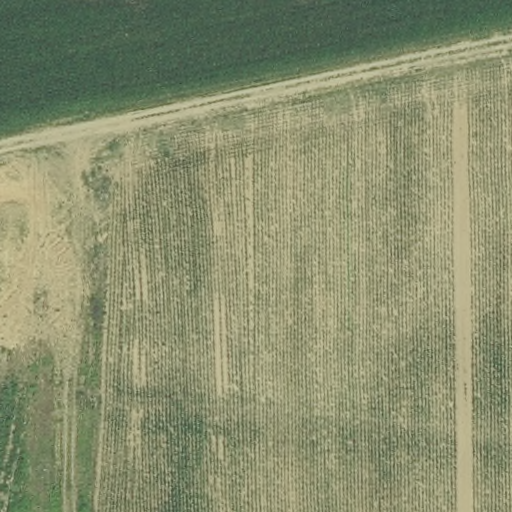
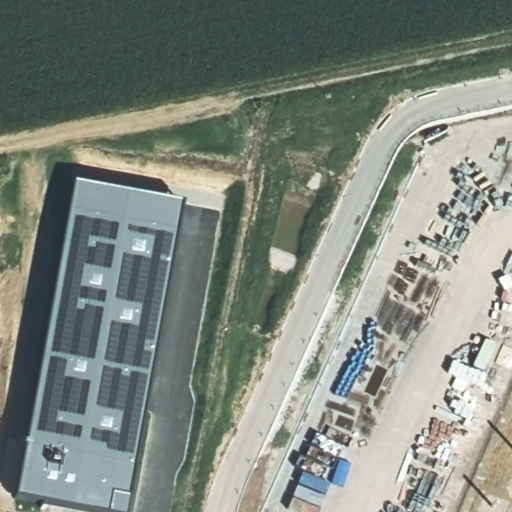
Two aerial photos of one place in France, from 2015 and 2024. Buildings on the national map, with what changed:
new [(182,201),(151,353),(151,367),(127,512),(86,512),(15,498),(73,182),(182,201)]

